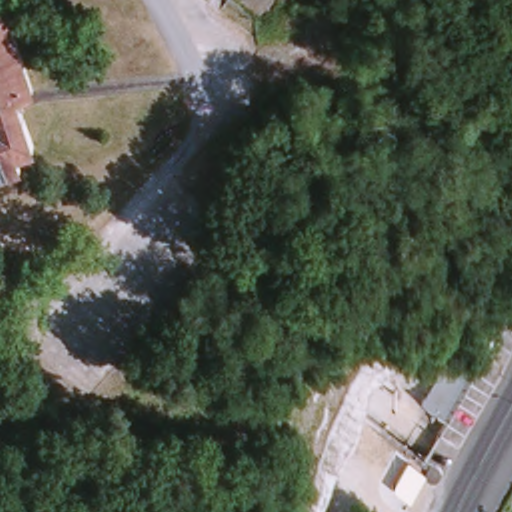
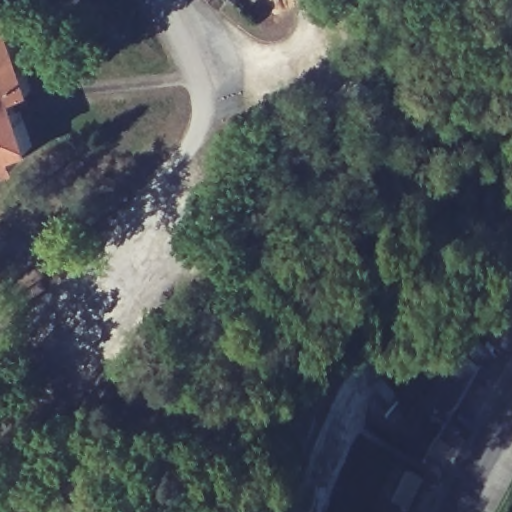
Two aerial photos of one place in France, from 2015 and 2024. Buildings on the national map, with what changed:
unchanged [(39,89),(24,97),(39,149),(24,155),(27,169),(0,178),(0,7),(9,4),(39,89)]
unchanged [(426,408),(457,354),(483,368),(452,421),(426,408)]

